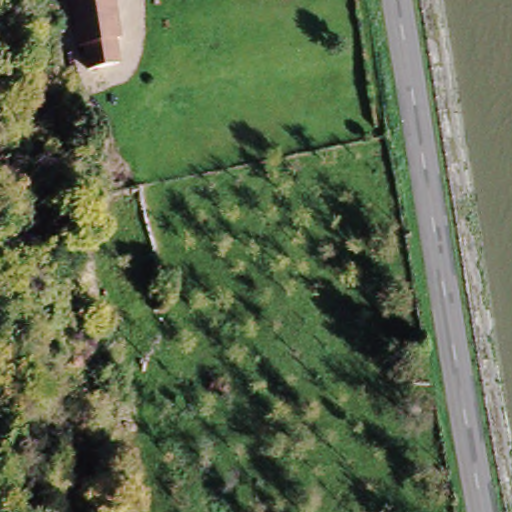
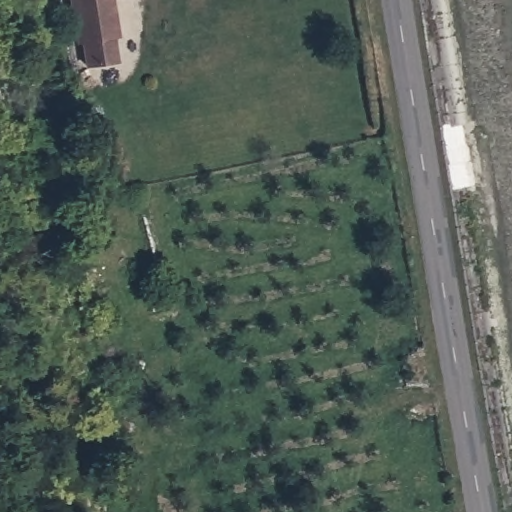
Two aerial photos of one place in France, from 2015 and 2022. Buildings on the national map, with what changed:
unchanged [(115,40),(119,65),(89,70),(85,45),(80,46),(72,0),(113,0),(120,39),(115,40)]

